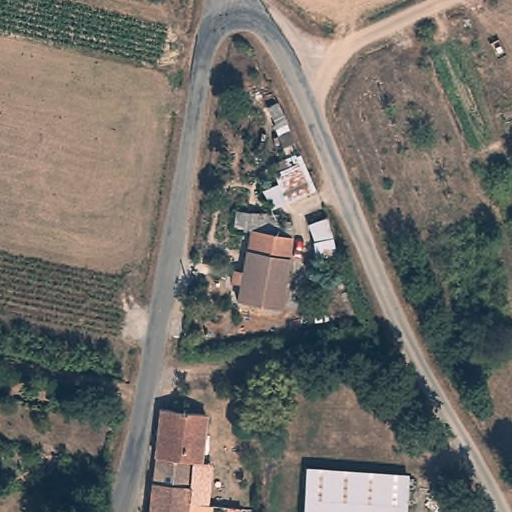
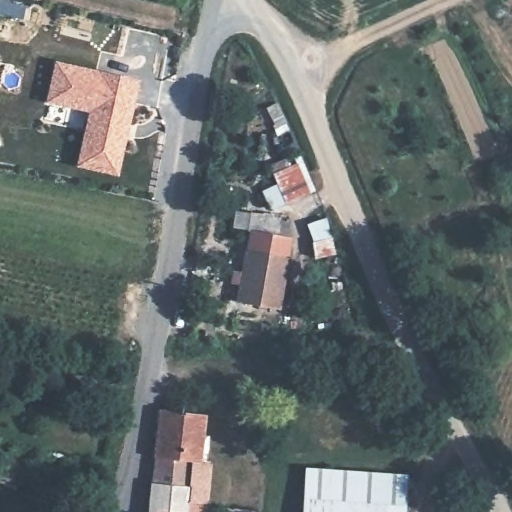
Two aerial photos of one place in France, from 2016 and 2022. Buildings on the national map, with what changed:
new [(55,61),(140,79),(119,177),(75,167),(87,113),(45,102),(55,61)]
unchanged [(267,192),(280,184),(273,165),(287,158),(267,103),(280,99),(318,190),(271,208),(267,192)]
unchanged [(285,296),(244,291),(255,218),(296,224),(285,296)]
unchanged [(152,489),(160,438),(162,414),(163,413),(207,419),(202,466),(222,469),(231,470),(226,512),(213,512),(197,510),(197,512),(149,512),(150,506),(152,489)]
unchanged [(412,478),(411,512),(304,512),(307,467),(412,478)]

